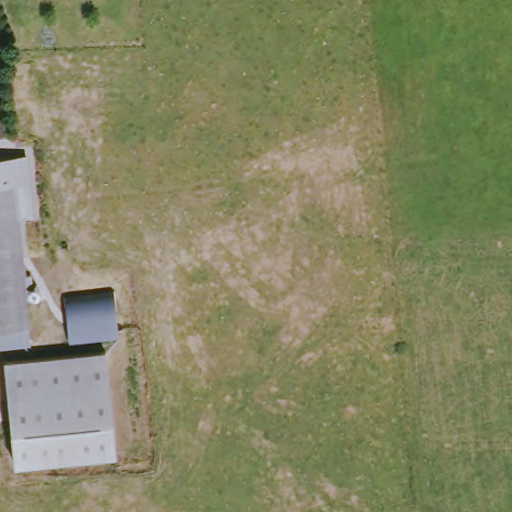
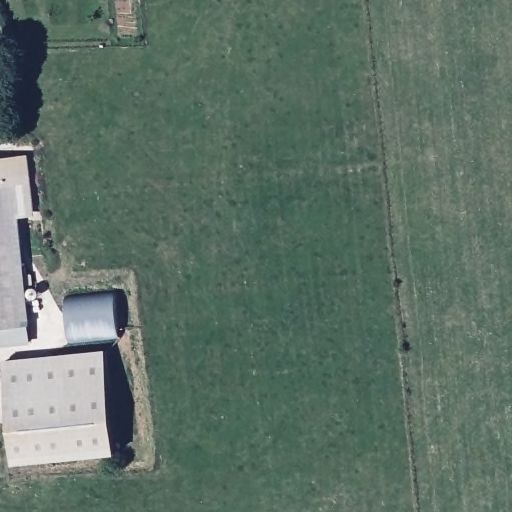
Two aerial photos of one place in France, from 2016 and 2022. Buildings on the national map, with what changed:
unchanged [(23,154),(29,211),(12,213),(24,323),(21,324),(22,341),(0,344),(0,156),(23,154)]
unchanged [(115,296),(119,340),(70,344),(66,299),(115,296)]
unchanged [(109,351),(117,453),(15,461),(7,359),(109,351)]

